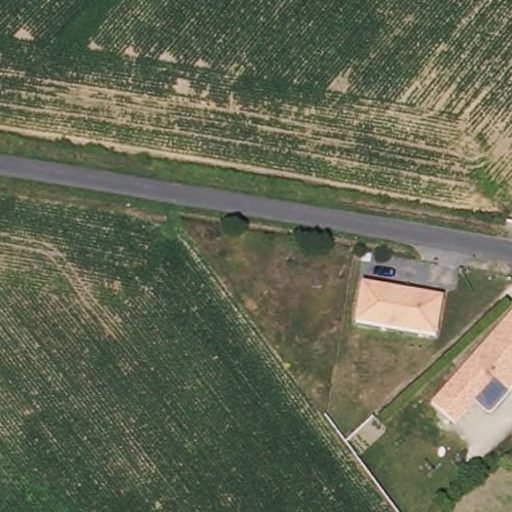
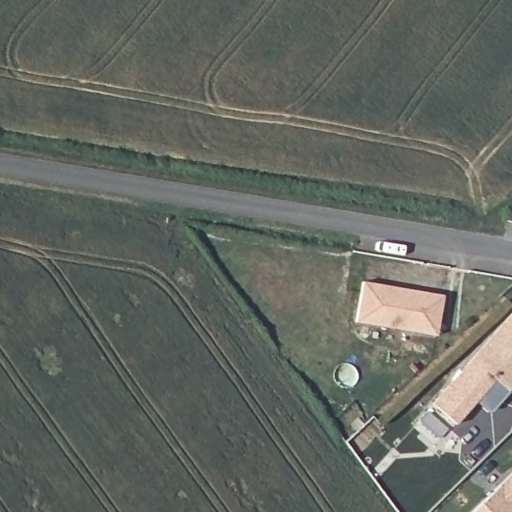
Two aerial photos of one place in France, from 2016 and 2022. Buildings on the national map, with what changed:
unchanged [(356,323),(364,283),(444,297),(435,338),(356,323)]
unchanged [(512,385),(505,393),(493,381),(452,424),(430,404),(512,314),(512,385)]
new [(512,473),(512,512),(471,512),(512,473)]

